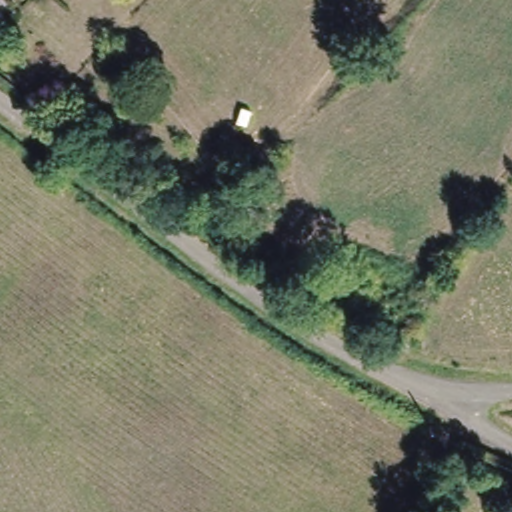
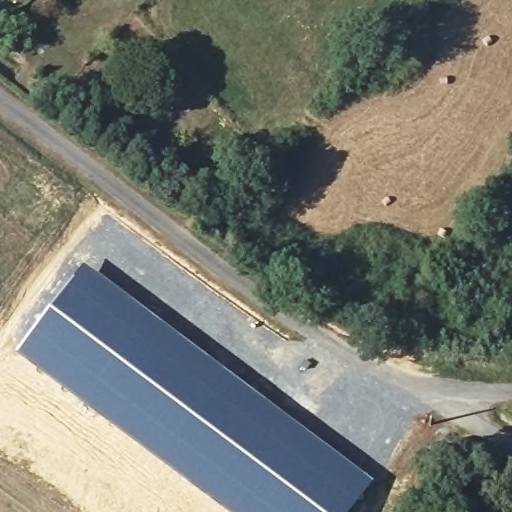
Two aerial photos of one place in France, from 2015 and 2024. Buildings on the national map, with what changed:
new [(331,318),(306,300),(331,266),(337,257),(364,277),(331,318)]
new [(224,512),(16,353),(85,263),(374,483),(352,512),(224,512)]

